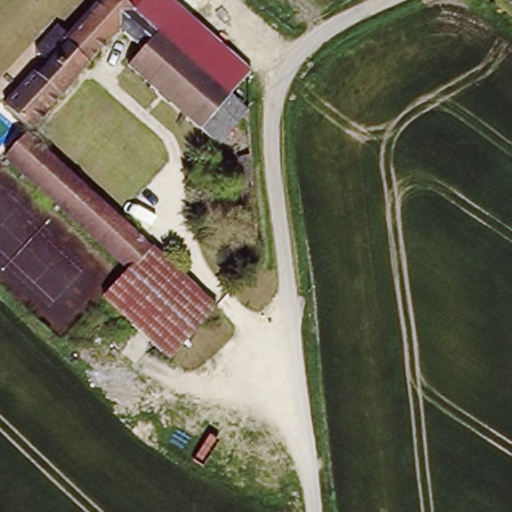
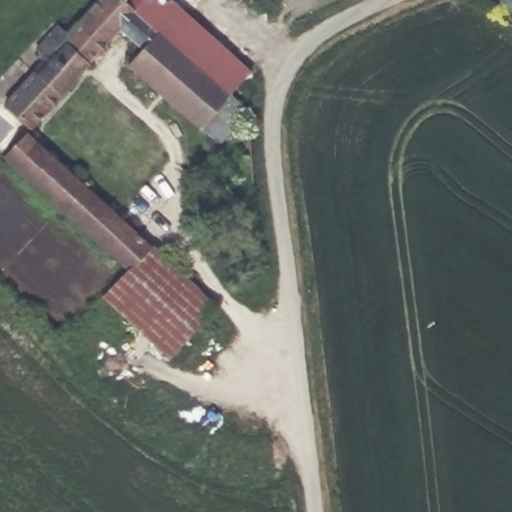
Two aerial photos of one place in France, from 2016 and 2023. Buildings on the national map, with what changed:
unchanged [(132,63),(146,44),(125,26),(32,128),(7,106),(49,60),(38,50),(61,25),(72,35),(102,0),(147,0),(142,6),(254,102),(222,141),(132,63)]
unchanged [(27,134),(155,245),(135,268),(7,159),(27,134)]
unchanged [(244,207),(244,159),(256,158),(258,207),(244,207)]
unchanged [(172,357),(106,303),(135,268),(155,245),(219,299),(172,357)]

